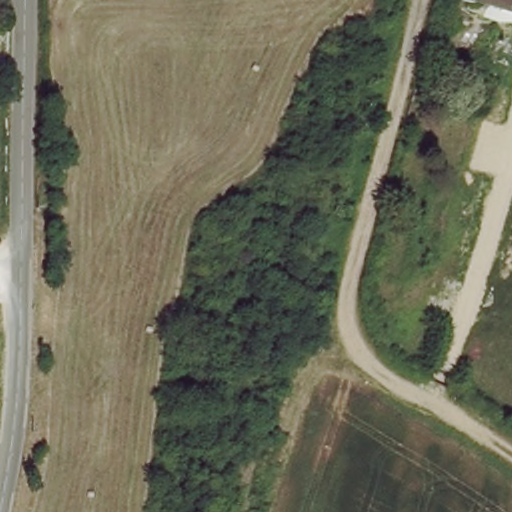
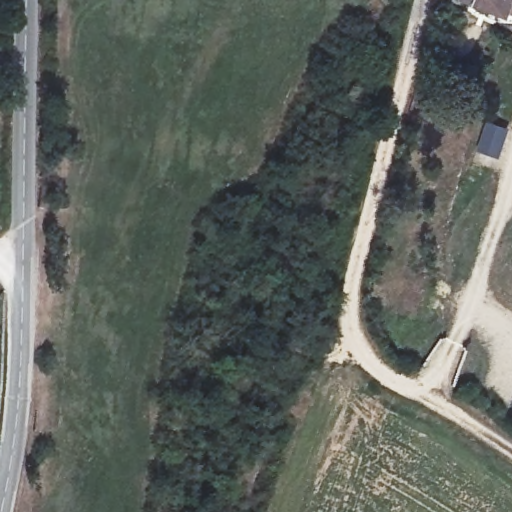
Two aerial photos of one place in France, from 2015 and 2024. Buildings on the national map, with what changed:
unchanged [(507,13),(483,6),(468,0),(511,0),(507,13)]

